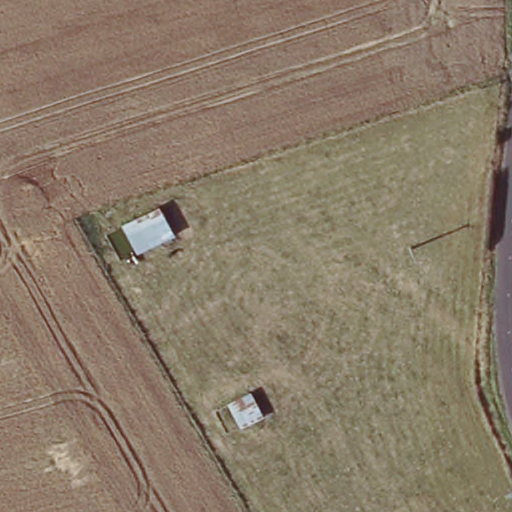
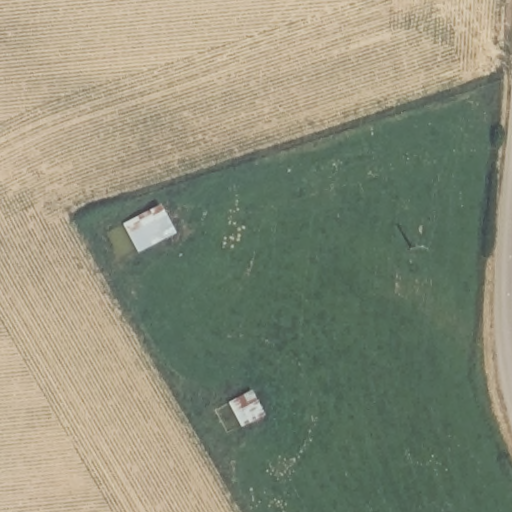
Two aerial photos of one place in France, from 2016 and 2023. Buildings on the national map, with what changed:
unchanged [(130,223),(167,207),(179,236),(145,250),(130,223)]
unchanged [(220,409),(239,401),(250,424),(229,434),(220,409)]

